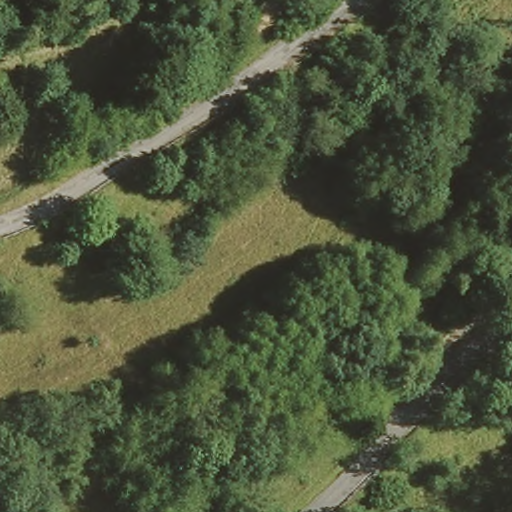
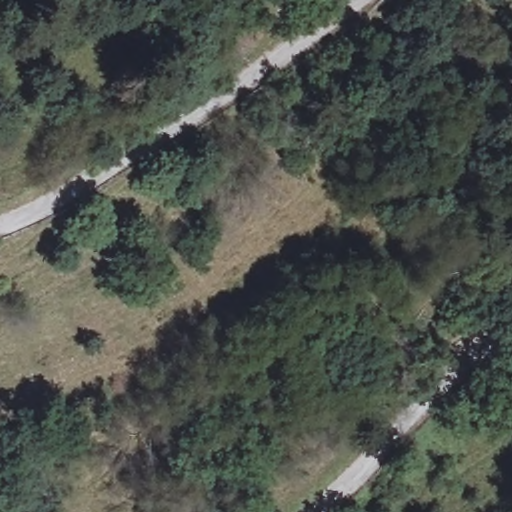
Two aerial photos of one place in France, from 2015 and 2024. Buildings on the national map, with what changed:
[]

